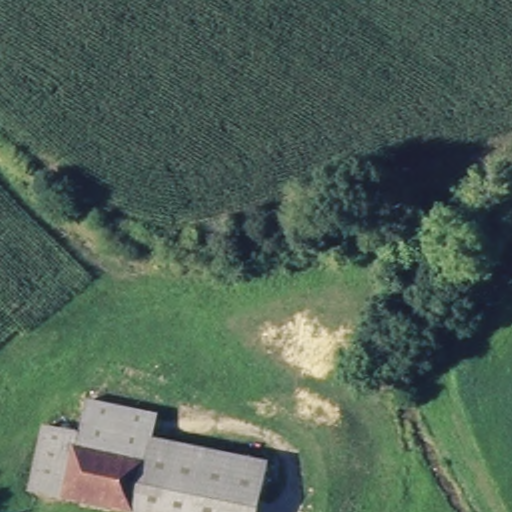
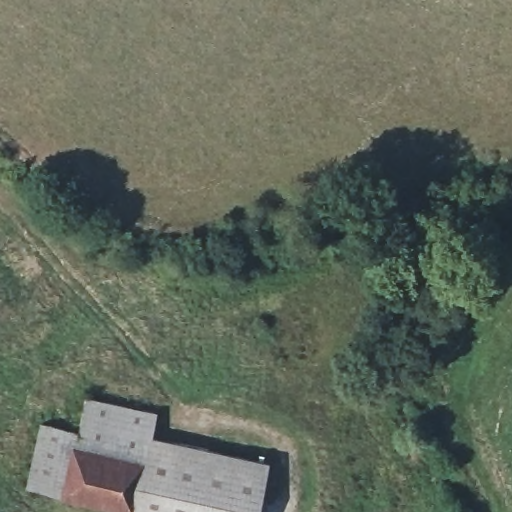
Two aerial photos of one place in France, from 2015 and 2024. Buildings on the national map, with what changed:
unchanged [(56,432),(75,435),(77,435),(84,401),(89,402),(154,414),(149,441),(268,463),(258,512),(115,512),(27,494),(34,458),(41,430),(56,432)]

